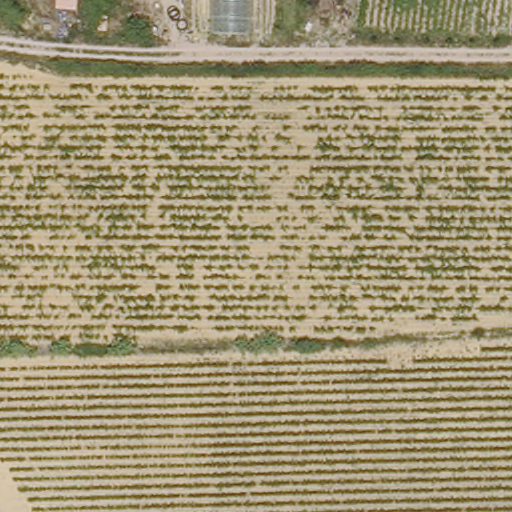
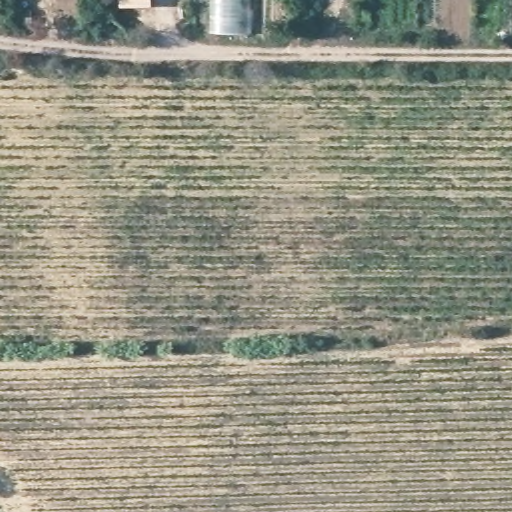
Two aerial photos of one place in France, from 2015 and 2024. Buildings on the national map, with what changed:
new [(147,5),(116,5),(116,0),(147,0),(147,5)]
unchanged [(214,0),(250,0),(249,35),(214,35),(214,0)]

